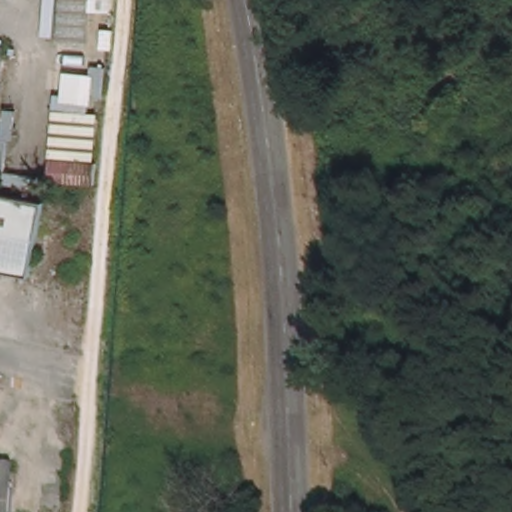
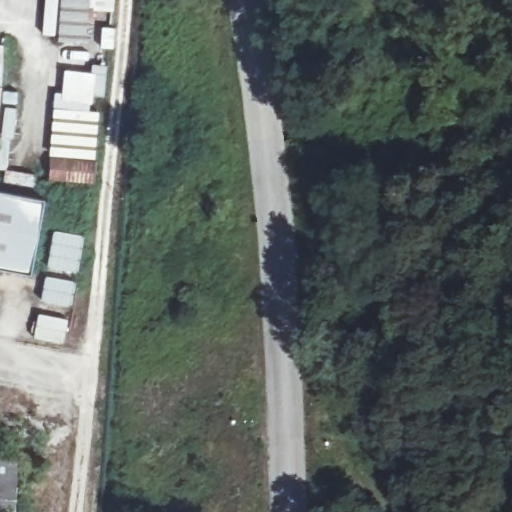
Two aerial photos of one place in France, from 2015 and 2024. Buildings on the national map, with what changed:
unchanged [(47,0),(115,0),(114,12),(90,12),(87,39),(45,36),(47,0)]
unchanged [(52,186),(55,107),(63,107),(66,72),(93,72),(88,112),(98,112),(95,188),(52,186)]
unchanged [(0,126),(0,86),(4,86),(0,126)]
unchanged [(33,272),(0,266),(0,191),(44,197),(33,272)]
unchanged [(11,512),(0,512),(0,458),(15,459),(11,512)]

